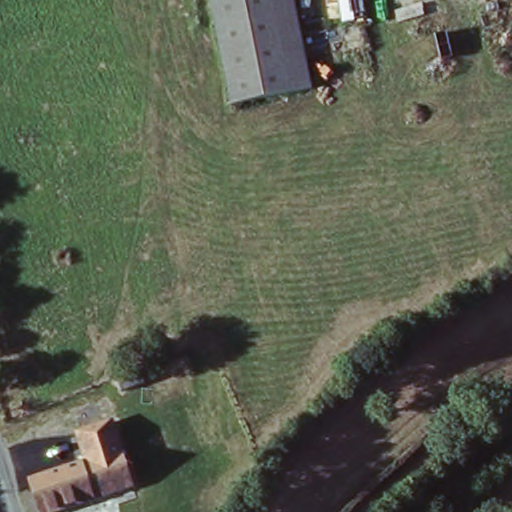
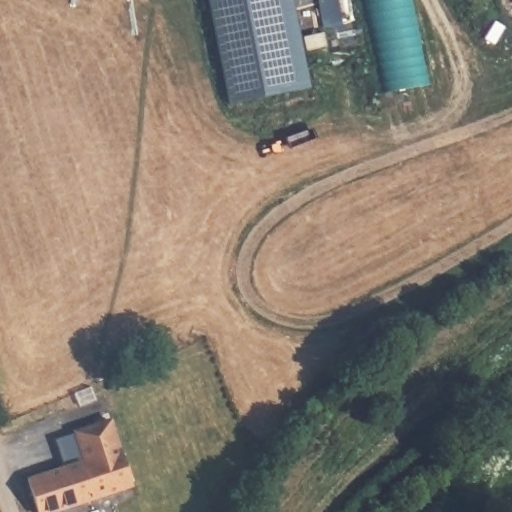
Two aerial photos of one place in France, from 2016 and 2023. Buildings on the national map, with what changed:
unchanged [(209,0),(294,0),(312,86),(230,105),(209,0)]
new [(323,29),(318,0),(353,0),(356,21),(323,29)]
new [(384,94),(365,0),(414,0),(430,87),(384,94)]
new [(136,368),(142,382),(119,392),(113,378),(136,368)]
unchanged [(109,490),(65,512),(40,512),(31,492),(117,451),(128,474),(109,490)]

